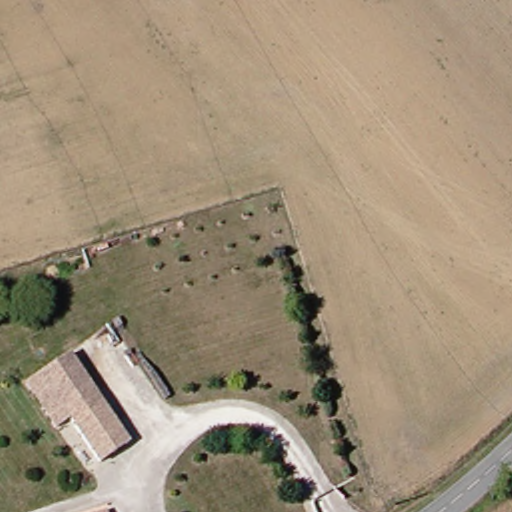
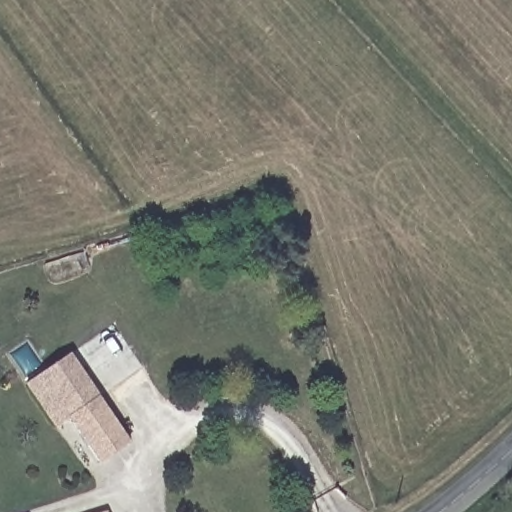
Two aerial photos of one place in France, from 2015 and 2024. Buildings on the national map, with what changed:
unchanged [(71,350),(136,439),(99,462),(70,419),(57,427),(25,379),(71,350)]

